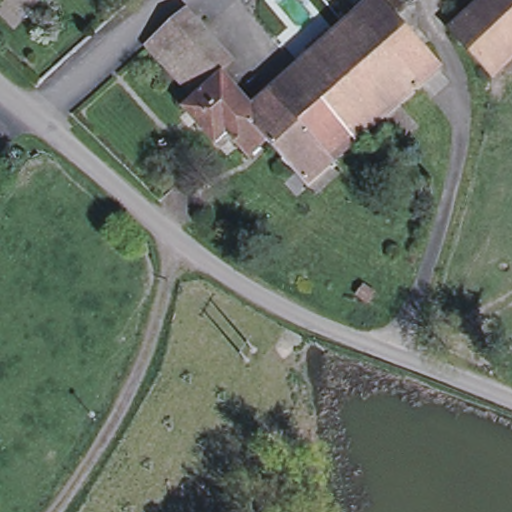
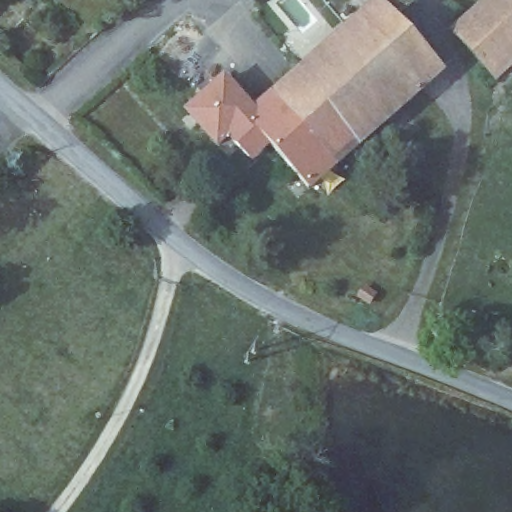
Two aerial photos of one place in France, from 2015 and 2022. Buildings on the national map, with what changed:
unchanged [(402,19),(448,69),(429,86),(363,16),(381,0),(415,0),(418,4),(402,19)]
unchanged [(455,32),(489,0),(512,0),(512,60),(495,76),(455,32)]
unchanged [(363,16),(429,86),(342,163),(280,93),(363,16)]
unchanged [(313,188),(272,143),(254,159),(237,140),(226,150),(193,113),(205,103),(230,79),(260,111),(280,93),(342,163),(313,188)]
unchanged [(365,287),(375,296),(370,302),(360,293),(365,287)]

